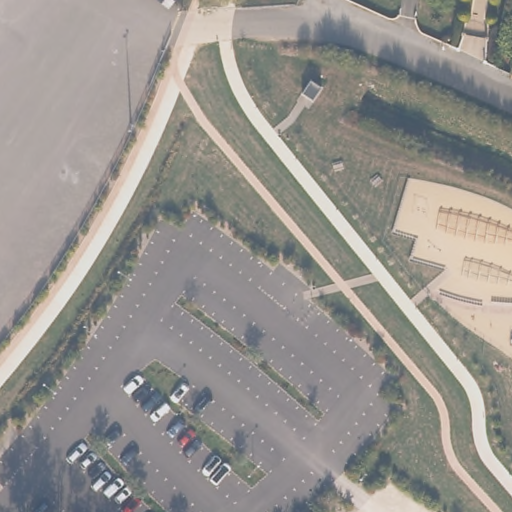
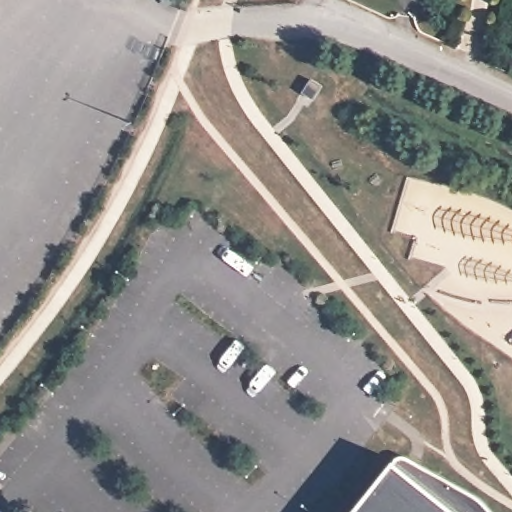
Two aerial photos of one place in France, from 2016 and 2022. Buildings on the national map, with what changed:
new [(395,458),(402,458),(406,458),(477,499),(490,512),(353,512),(395,458)]

